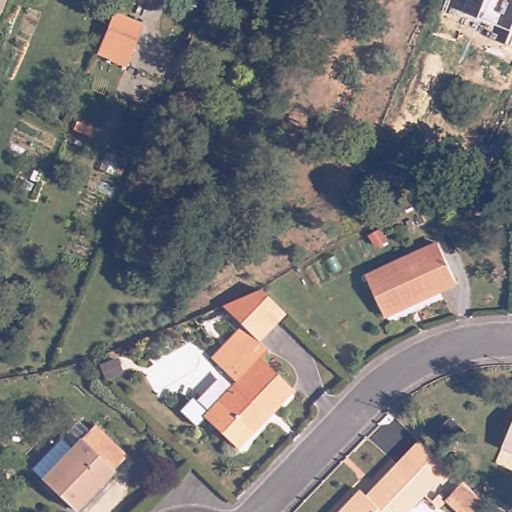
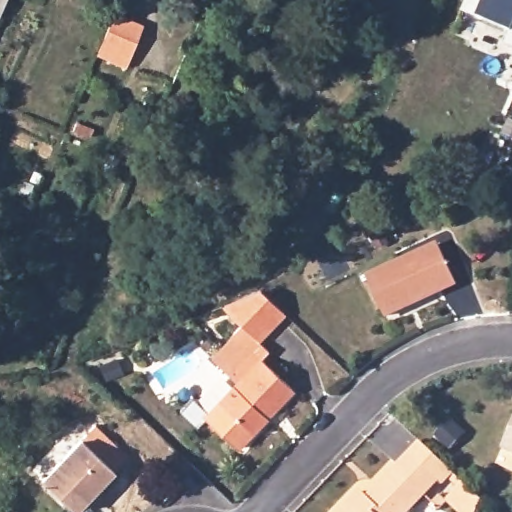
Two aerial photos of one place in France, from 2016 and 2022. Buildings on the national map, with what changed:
unchanged [(0,0),(7,0),(0,16),(0,0)]
unchanged [(505,47),(512,34),(476,20),(478,16),(462,10),(466,0),(512,0),(512,49),(505,47)]
unchanged [(114,12),(144,25),(131,57),(114,51),(110,60),(97,55),(114,12)]
unchanged [(439,246),(455,283),(387,317),(368,281),(439,246)]
unchanged [(262,339),(271,348),(259,358),(298,389),(237,448),(203,416),(234,380),(209,357),(241,322),(224,304),(258,288),(285,314),(262,339)]
unchanged [(74,460),(85,448),(98,434),(130,463),(129,464),(117,477),(84,512),(71,512),(36,479),(64,450),(74,460)]
unchanged [(505,450),(512,435),(512,452),(505,450)]
unchanged [(366,492),(372,498),(415,452),(443,479),(412,512),(346,512),(366,492)]
unchanged [(467,468),(486,488),(475,512),(449,487),(467,468)]

